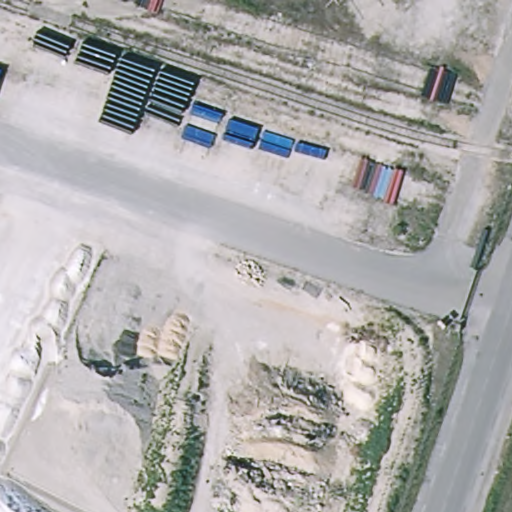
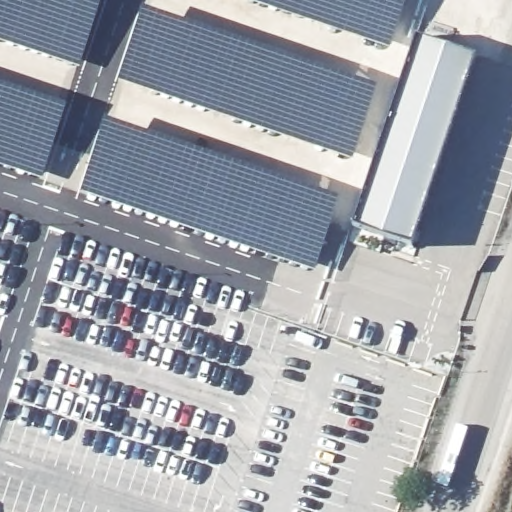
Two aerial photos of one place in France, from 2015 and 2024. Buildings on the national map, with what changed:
new [(0,40),(0,0),(102,0),(78,66),(0,40)]
new [(251,0),(406,0),(390,47),(251,0)]
new [(378,85),(351,158),(117,80),(142,7),(378,85)]
new [(417,36),(476,55),(412,245),(354,226),(417,36)]
new [(66,106),(41,179),(0,165),(0,84),(66,106)]
new [(339,198),(313,270),(80,190),(105,119),(339,198)]

